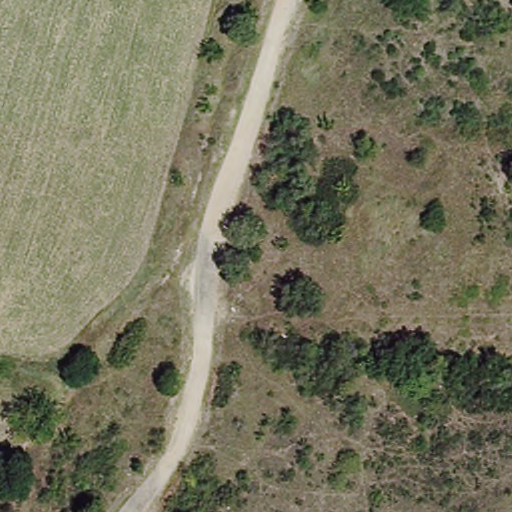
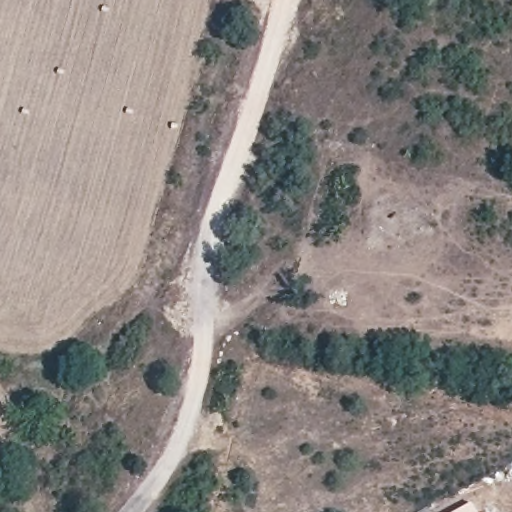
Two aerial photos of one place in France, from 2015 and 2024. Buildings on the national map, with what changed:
new [(470,504),(475,512),(455,512),(470,504)]

